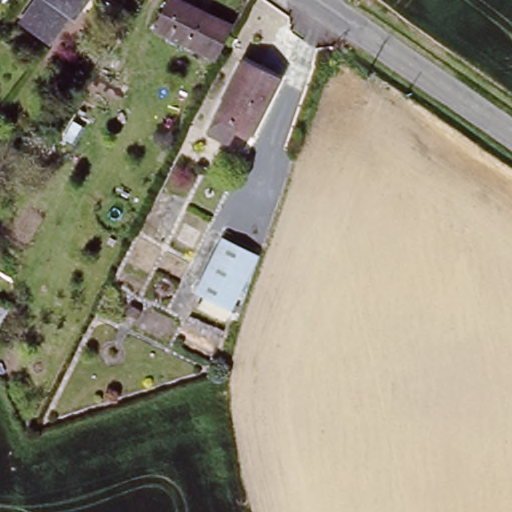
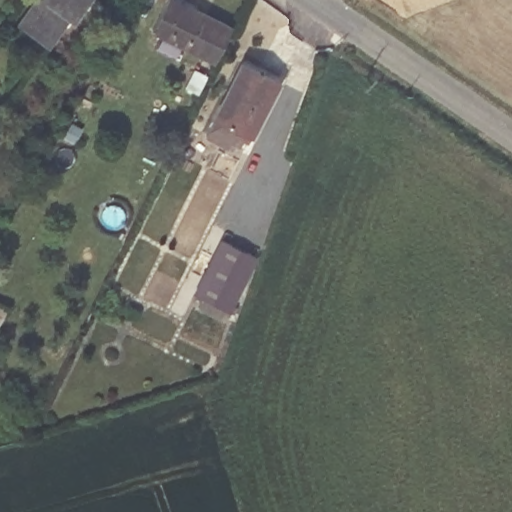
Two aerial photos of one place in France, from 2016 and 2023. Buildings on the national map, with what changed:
unchanged [(76,2),(70,11),(66,8),(47,36),(19,17),(30,0),(78,0),(76,2)]
unchanged [(230,27),(213,61),(153,30),(168,0),(177,0),(230,27)]
unchanged [(228,122),(222,134),(202,124),(236,52),(271,68),(245,123),(243,128),(228,122)]
unchanged [(259,255),(235,304),(242,307),(238,314),(199,294),(226,239),(259,255)]

